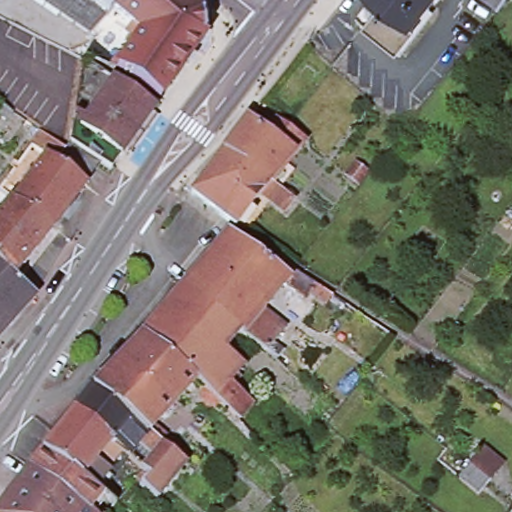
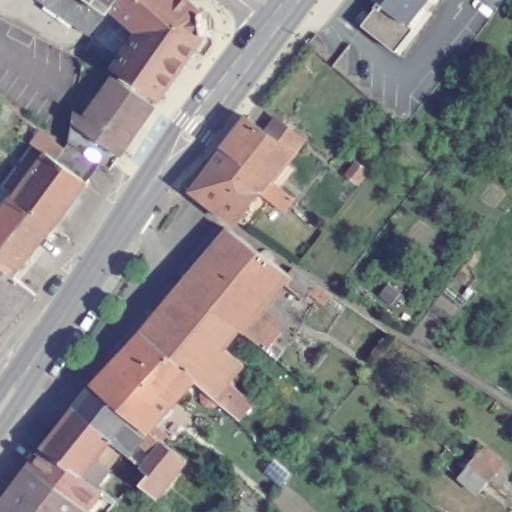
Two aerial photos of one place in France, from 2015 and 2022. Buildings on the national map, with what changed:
unchanged [(90,35),(39,0),(88,0),(108,14),(90,35)]
unchanged [(108,14),(88,0),(120,0),(113,7),(108,14)]
unchanged [(141,32),(113,7),(120,0),(185,0),(201,14),(201,15),(205,35),(198,42),(161,96),(160,97),(116,67),(117,66),(141,32)]
unchanged [(357,20),(372,1),(370,0),(371,0),(417,0),(427,8),(412,27),(395,50),(390,47),(357,20)]
unchanged [(505,0),(497,10),(484,0),(505,0)]
unchanged [(110,170),(101,163),(69,142),(72,120),(80,125),(114,76),(155,105),(110,170)]
unchanged [(5,120),(0,116),(0,102),(12,110),(5,120)]
unchanged [(237,222),(235,225),(191,191),(225,147),(247,117),(272,136),(281,123),(302,138),(292,151),(285,160),(295,169),(280,187),(295,199),(286,210),(261,191),(237,222)]
unchanged [(45,154),(32,144),(41,131),(65,149),(61,176),(81,189),(54,227),(13,198),(45,154)]
unchanged [(81,189),(61,176),(65,149),(69,142),(101,163),(81,189)]
unchanged [(13,198),(54,227),(15,275),(13,277),(0,264),(0,213),(13,198)]
unchanged [(305,300),(283,284),(258,313),(282,332),(267,351),(239,330),(240,329),(181,285),(229,229),(260,253),(263,250),(265,250),(266,250),(271,252),(273,256),(271,261),(287,273),(292,268),(317,285),(333,295),(325,305),(311,293),(305,300)]
unchanged [(13,277),(15,275),(36,294),(0,335),(0,264),(13,277)]
unchanged [(253,403),(239,419),(195,380),(195,378),(141,333),(181,285),(240,329),(239,330),(224,348),(243,364),(236,373),(240,377),(234,385),(253,403)]
unchanged [(149,430),(148,431),(93,385),(141,333),(195,378),(195,380),(149,430)]
unchanged [(115,503),(107,512),(90,512),(28,466),(43,448),(74,409),(80,402),(93,385),(148,431),(149,430),(187,460),(186,461),(156,498),(140,484),(141,482),(137,478),(135,477),(142,468),(143,468),(129,456),(130,455),(123,450),(123,451),(110,468),(107,471),(112,475),(100,491),(115,503)]
unchanged [(459,477),(468,465),(478,454),(498,470),(488,481),(478,493),(459,477)]
unchanged [(28,466),(90,512),(0,512),(0,505),(28,466)]
unchanged [(190,466),(195,470),(192,473),(188,470),(190,466)]

